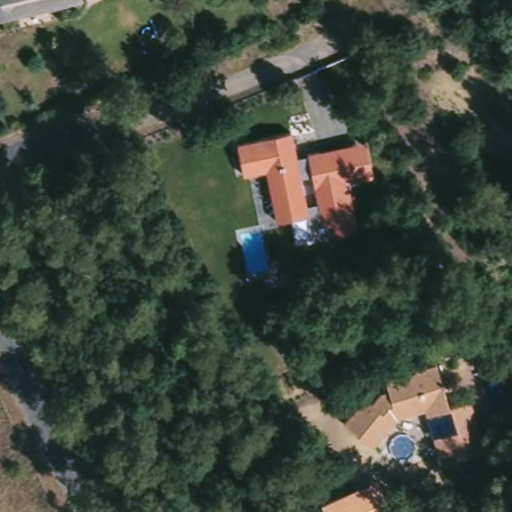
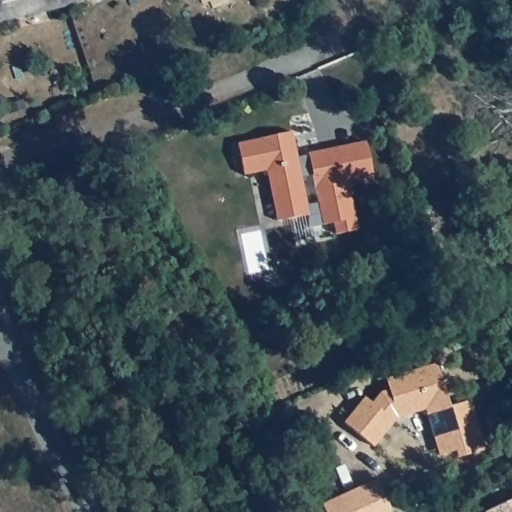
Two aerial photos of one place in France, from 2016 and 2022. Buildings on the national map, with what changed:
unchanged [(2,24),(0,15),(0,0),(87,0),(87,4),(2,24)]
unchanged [(307,213),(275,220),(265,171),(242,175),(236,142),(291,132),(307,213)]
unchanged [(371,141),(377,176),(350,181),(358,230),(334,234),(331,224),(320,226),(307,151),(371,141)]
unchanged [(394,420),(372,450),(343,427),(363,400),(370,405),(387,391),(385,381),(438,367),(441,384),(450,408),(470,403),(486,456),(442,466),(425,413),(394,420)]
unchanged [(321,503),(377,478),(392,512),(391,512),(326,512),(321,503)]
new [(512,499),(512,512),(483,512),(512,499)]

